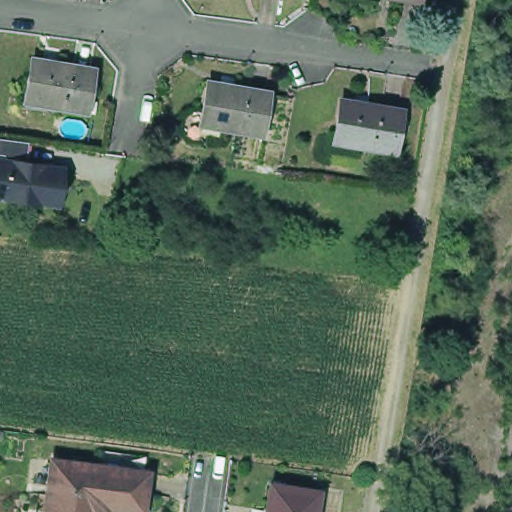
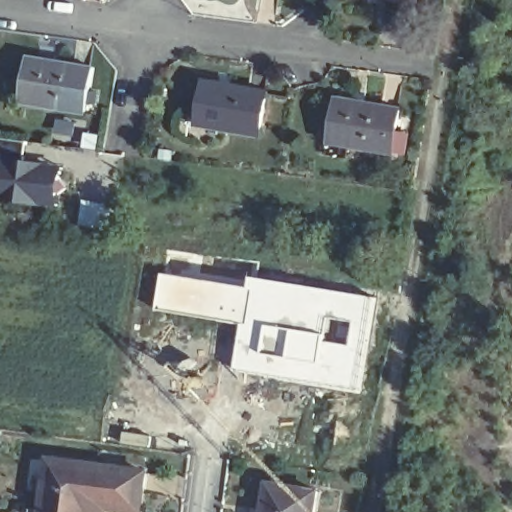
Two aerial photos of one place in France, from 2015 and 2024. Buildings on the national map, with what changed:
unchanged [(413,6),(373,0),(414,0),(413,6)]
unchanged [(30,61),(92,70),(85,113),(42,106),(25,103),(25,96),(30,61)]
unchanged [(196,111),(201,76),(261,86),(254,129),(212,122),(195,119),(196,111)]
unchanged [(333,140),(339,106),(400,115),(394,156),(350,150),(332,148),(333,140)]
unchanged [(39,205),(14,201),(2,199),(0,199),(0,161),(6,161),(7,157),(0,156),(0,138),(32,142),(29,164),(31,164),(43,166),(56,168),(68,169),(67,183),(71,189),(65,194),(63,209),(50,207),(39,205)]
new [(82,199),(117,204),(112,231),(78,225),(82,199)]
new [(162,272),(248,287),(250,275),(375,295),(358,391),(325,386),(236,368),(242,322),(157,308),(162,272)]
unchanged [(102,506),(101,512),(41,512),(47,460),(142,472),(137,511),(102,506)]
unchanged [(268,512),(273,480),(321,488),(317,512),(268,512)]

